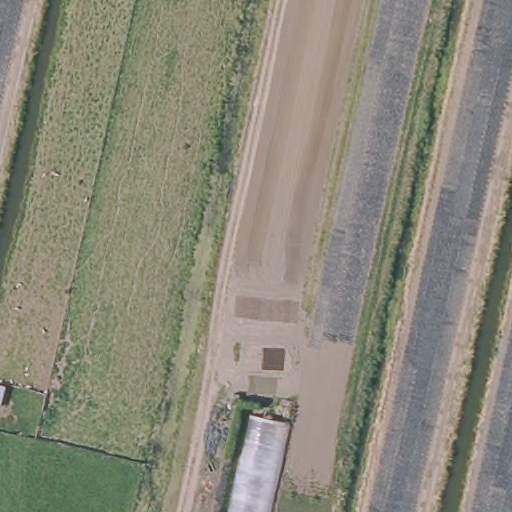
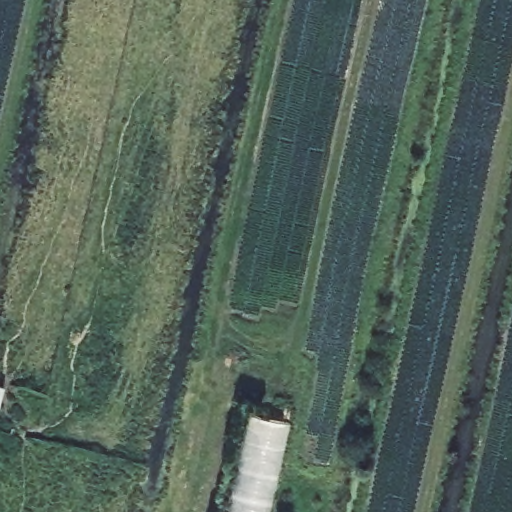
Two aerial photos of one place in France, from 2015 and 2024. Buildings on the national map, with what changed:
unchanged [(273,512),(233,512),(254,420),(291,430),(273,512)]

